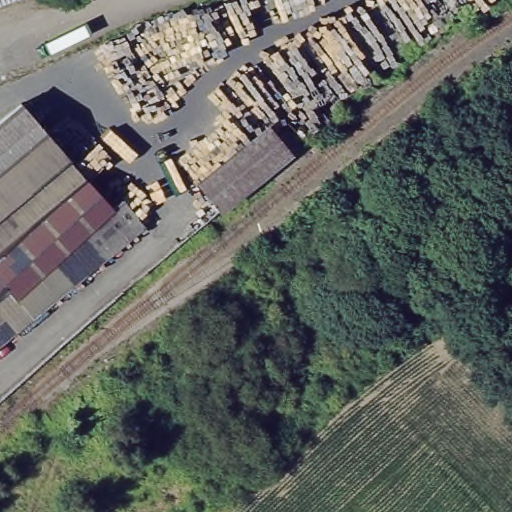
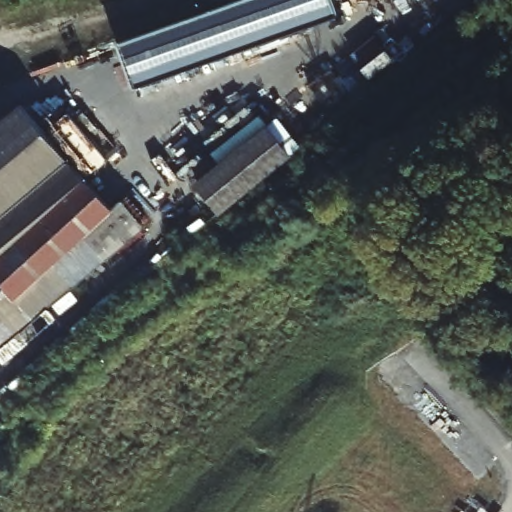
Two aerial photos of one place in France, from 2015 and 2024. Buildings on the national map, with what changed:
demolished [(0,3),(0,0),(9,0),(0,3)]
new [(249,0),(328,0),(337,19),(132,90),(117,46),(249,0)]
unchanged [(20,105),(112,207),(13,293),(0,278),(0,123),(20,105)]
unchanged [(257,124),(268,114),(292,140),(282,151),(281,149),(216,208),(190,179),(245,134),(257,124)]
unchanged [(112,207),(120,199),(145,226),(35,319),(13,293),(112,207)]
unchanged [(13,293),(35,319),(0,349),(0,278),(13,293)]

